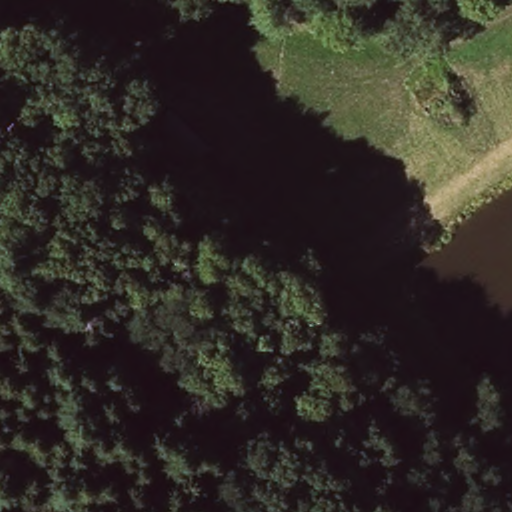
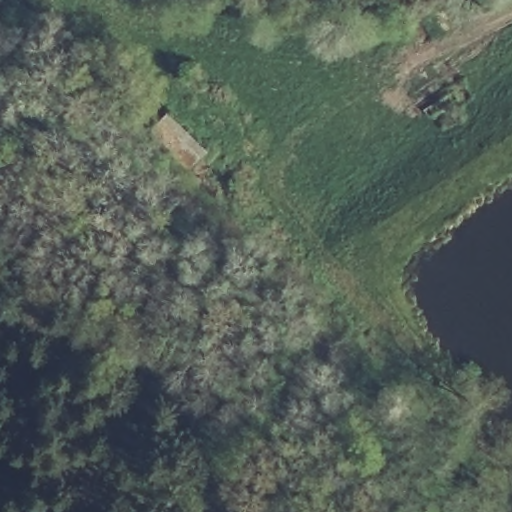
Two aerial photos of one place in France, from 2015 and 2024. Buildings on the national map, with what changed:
unchanged [(196,170),(151,128),(171,108),(212,148),(196,170)]

